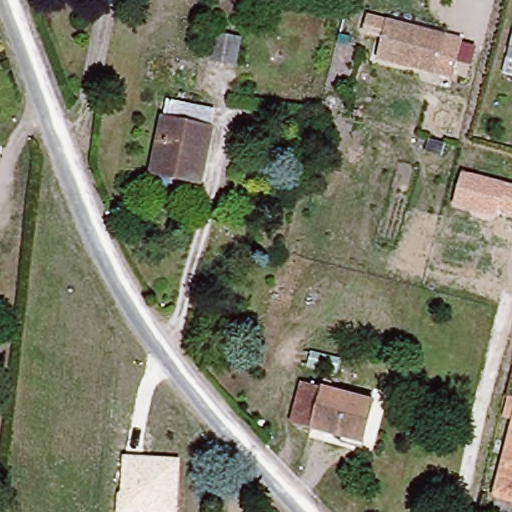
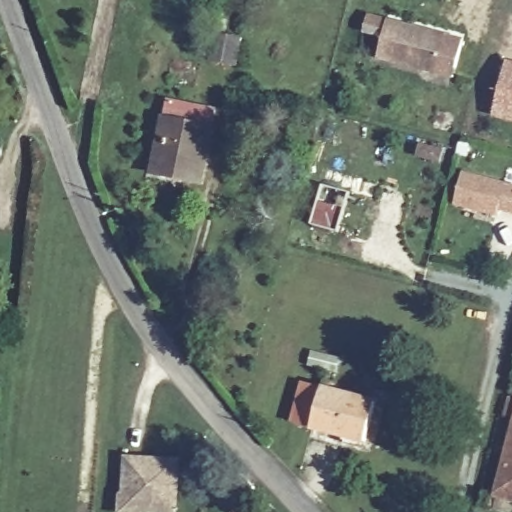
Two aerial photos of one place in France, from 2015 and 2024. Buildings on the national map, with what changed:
unchanged [(460,46),(453,74),(435,71),(433,80),(375,65),(384,26),(460,46)]
unchanged [(221,33),(248,39),(242,66),(215,60),(221,33)]
demolished [(512,36),(512,64),(506,62),(512,36)]
new [(490,116),(502,62),(512,64),(512,121),(490,116)]
unchanged [(152,174),(167,104),(216,115),(201,185),(152,174)]
unchanged [(512,185),(512,215),(499,212),(497,217),(453,205),(462,172),(512,185)]
unchanged [(360,439),(308,426),(291,421),(301,381),(317,385),(370,399),(360,439)]
unchanged [(499,491),(512,444),(512,495),(499,491)]
unchanged [(181,459),(178,512),(117,512),(118,495),(122,493),(123,456),(181,459)]

